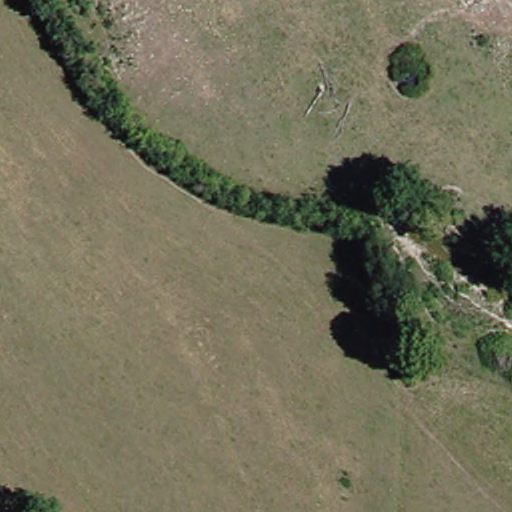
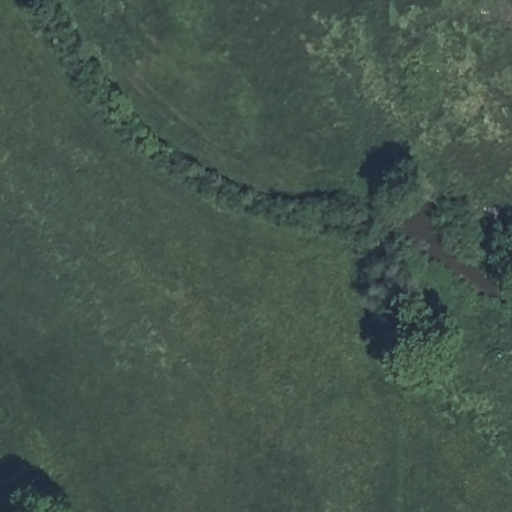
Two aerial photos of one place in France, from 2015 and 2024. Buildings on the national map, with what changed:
[]

